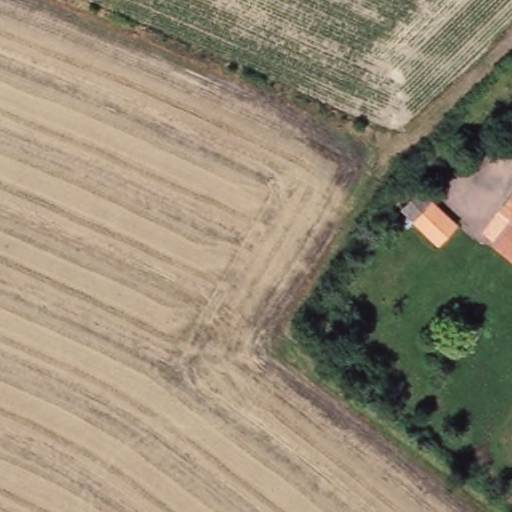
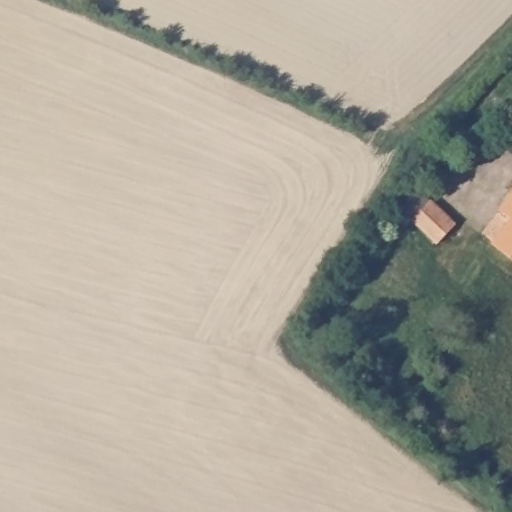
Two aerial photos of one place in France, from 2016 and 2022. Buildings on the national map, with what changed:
unchanged [(443,245),(417,220),(411,226),(400,216),(424,191),(436,200),(462,225),(443,245)]
unchanged [(504,210),(512,201),(512,216),(504,210)]
unchanged [(497,244),(512,225),(512,255),(497,244)]

